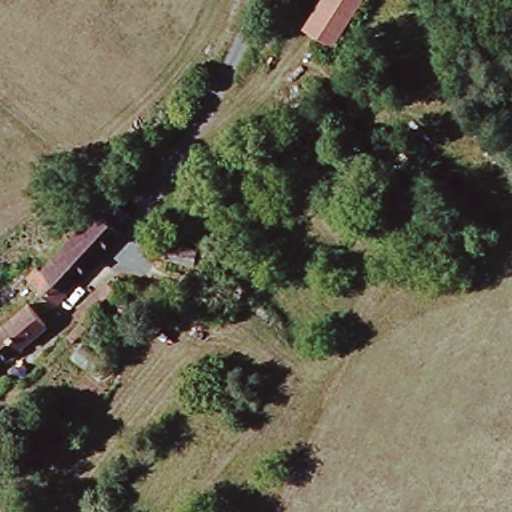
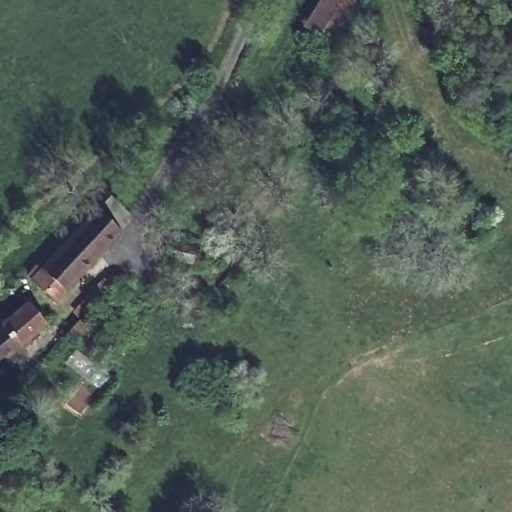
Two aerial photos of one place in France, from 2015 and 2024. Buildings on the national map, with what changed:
unchanged [(307,27),(322,0),(359,0),(335,42),(307,27)]
unchanged [(33,280),(94,213),(119,235),(57,302),(33,280)]
unchanged [(183,242),(184,237),(191,235),(203,239),(196,264),(168,256),(172,239),(183,242)]
unchanged [(41,322),(0,358),(0,322),(23,302),(41,322)]

